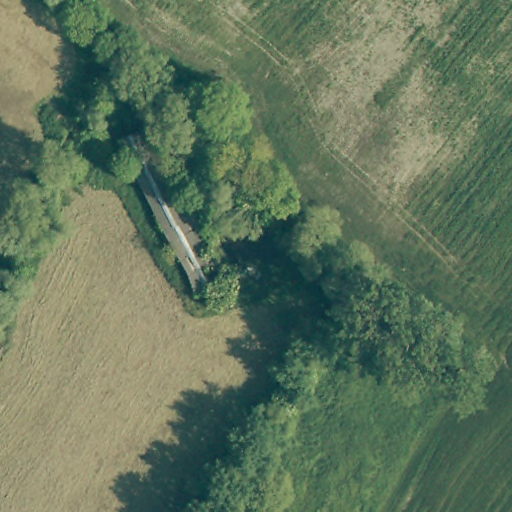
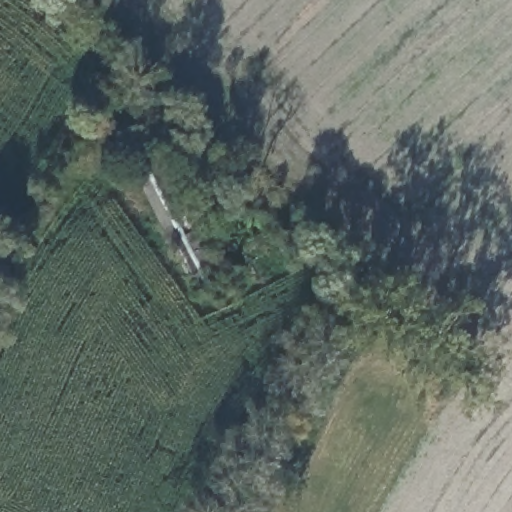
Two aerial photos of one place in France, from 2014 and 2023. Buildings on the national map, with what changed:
unchanged [(196,297),(120,143),(151,129),(226,282),(196,297)]

